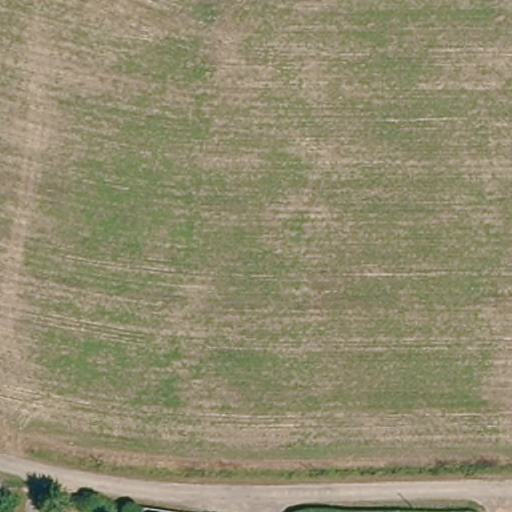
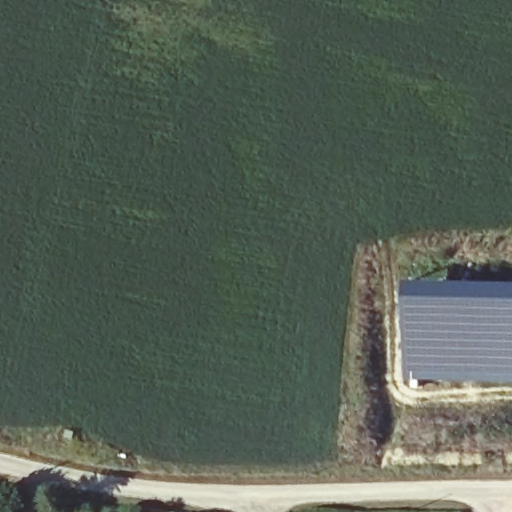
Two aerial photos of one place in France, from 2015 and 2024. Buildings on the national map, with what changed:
new [(408,382),(409,280),(512,283),(512,384),(408,382)]

